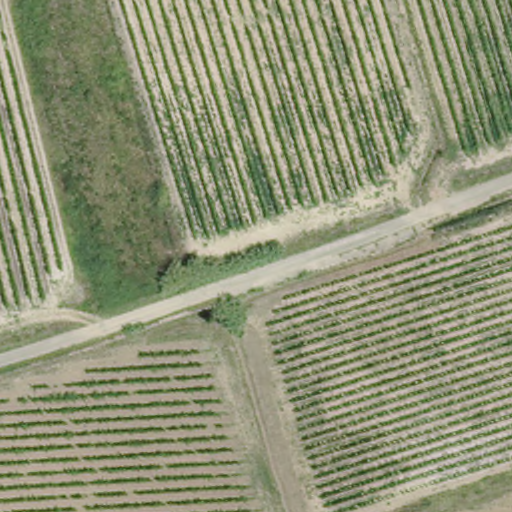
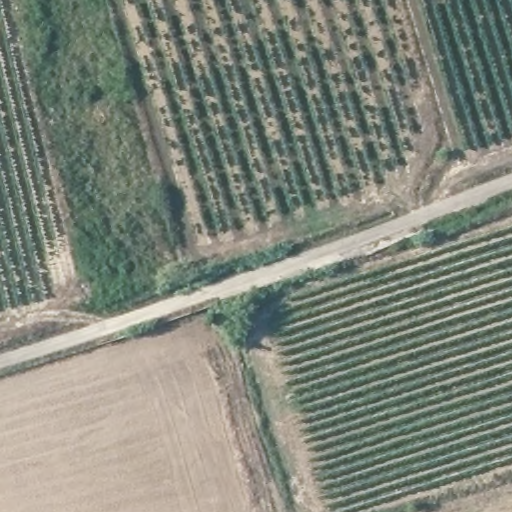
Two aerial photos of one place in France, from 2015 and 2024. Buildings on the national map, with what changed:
[]

